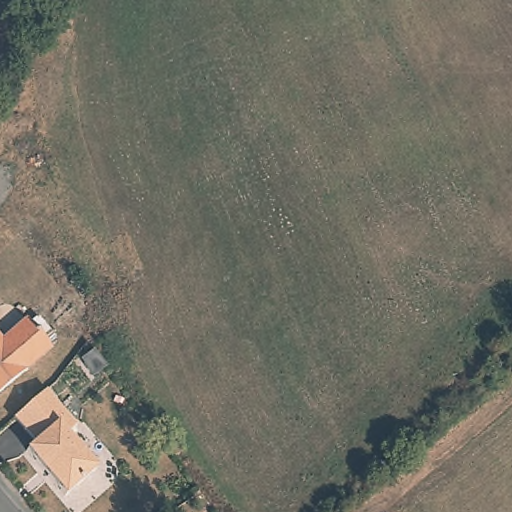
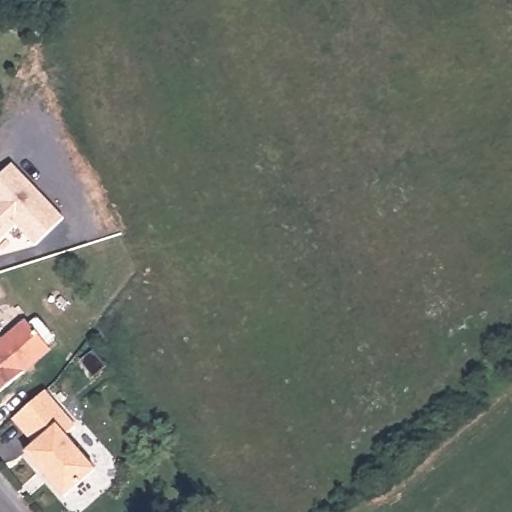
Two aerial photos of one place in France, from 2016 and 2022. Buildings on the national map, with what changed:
new [(64,215),(35,245),(16,224),(0,240),(0,173),(12,162),(64,215)]
unchanged [(0,387),(0,333),(2,336),(27,315),(51,343),(0,387)]
unchanged [(92,474),(60,500),(22,454),(32,446),(11,420),(44,393),(74,430),(63,438),(92,474)]

